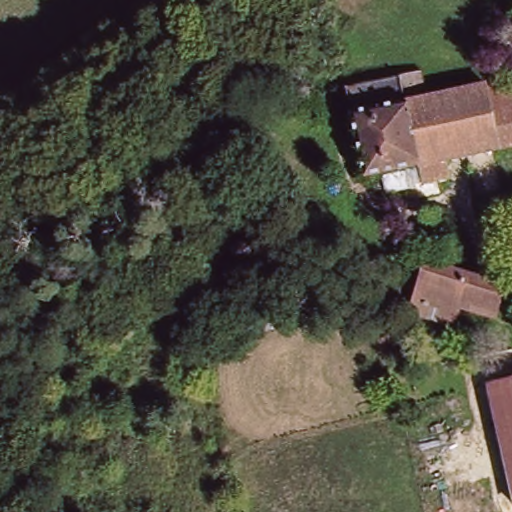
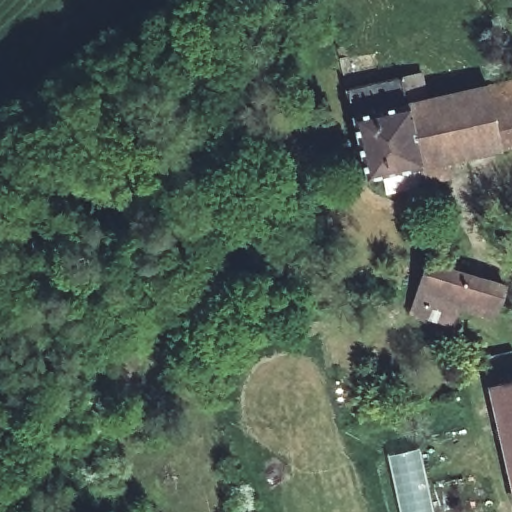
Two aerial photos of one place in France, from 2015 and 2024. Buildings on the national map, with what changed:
unchanged [(486,86),(512,81),(512,150),(492,153),(496,173),(425,187),(422,166),(369,177),(356,114),(361,114),(349,87),(423,71),(428,94),(486,86)]
unchanged [(427,264),(512,289),(512,313),(461,299),(455,314),(413,302),(427,264)]
unchanged [(512,382),(512,499),(487,386),(512,382)]
new [(400,512),(387,454),(419,447),(434,512),(400,512)]

